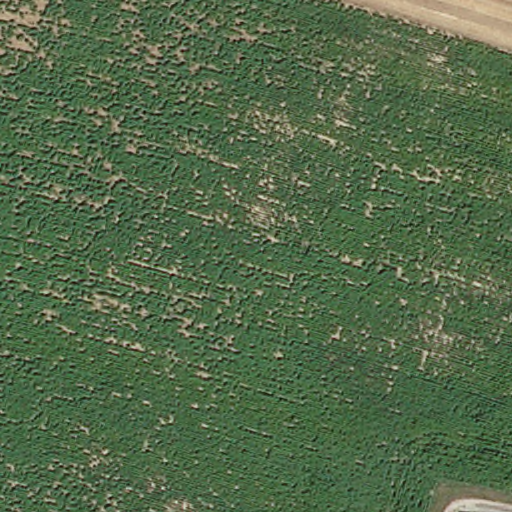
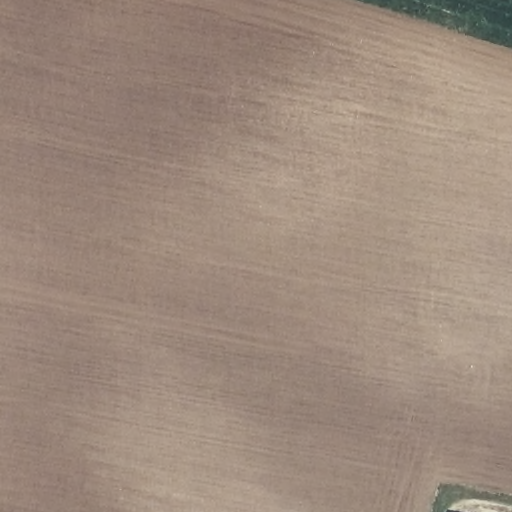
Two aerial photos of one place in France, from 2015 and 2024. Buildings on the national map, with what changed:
[]

